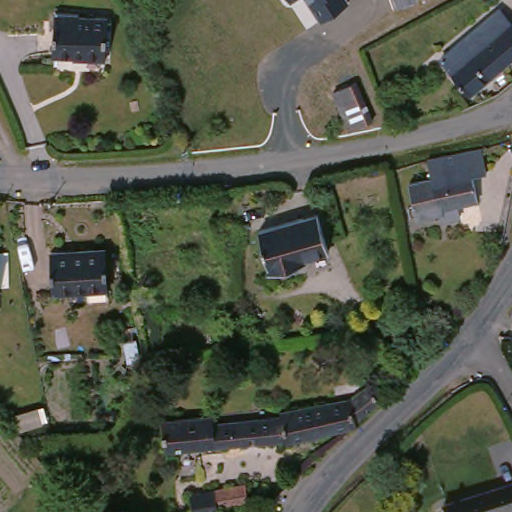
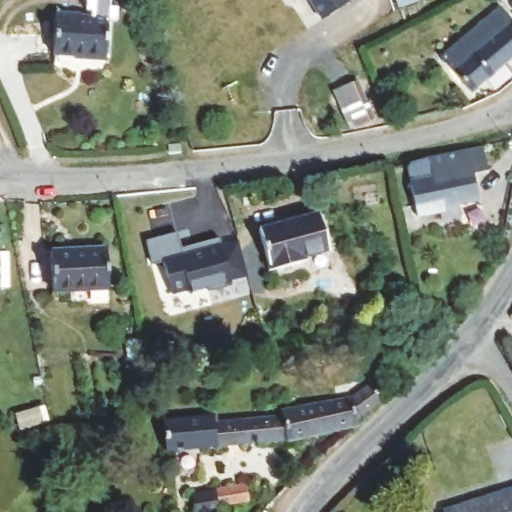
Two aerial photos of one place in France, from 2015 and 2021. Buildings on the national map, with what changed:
unchanged [(323,20),(308,0),(347,0),(348,1),(323,20)]
unchanged [(512,28),(512,61),(470,96),(443,62),(500,14),(512,28)]
unchanged [(105,64),(81,63),(81,57),(50,55),(53,15),(108,21),(105,64)]
unchanged [(329,118),(325,120),(321,112),(331,107),(325,91),(348,82),(366,120),(341,130),(335,115),(329,118)]
unchanged [(473,179),(479,204),(461,208),(463,220),(443,225),(441,219),(420,224),(413,189),(433,183),(428,163),(440,159),(465,153),(484,149),(490,175),(473,179)]
unchanged [(328,258),(303,264),(304,270),(268,279),(258,237),(318,222),(328,258)]
new [(175,234),(179,249),(219,239),(221,248),(238,242),(248,276),(230,281),(231,285),(209,291),(208,285),(170,295),(160,264),(151,266),(145,242),(175,234)]
unchanged [(105,294),(50,299),(47,258),(102,254),(105,294)]
unchanged [(285,448),(166,461),(163,427),(188,424),(214,423),(216,431),(280,424),(279,417),(332,408),(352,404),(371,389),(379,410),(359,431),(359,437),(286,451),(285,448)]
unchanged [(257,508),(230,512),(185,512),(184,504),(253,491),(257,508)]
unchanged [(512,494),(512,512),(469,512),(512,494)]

